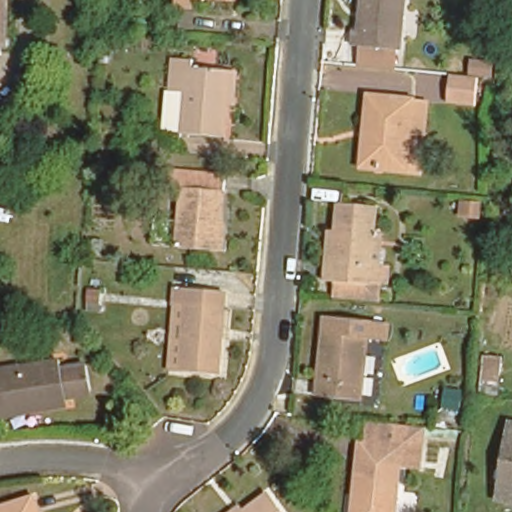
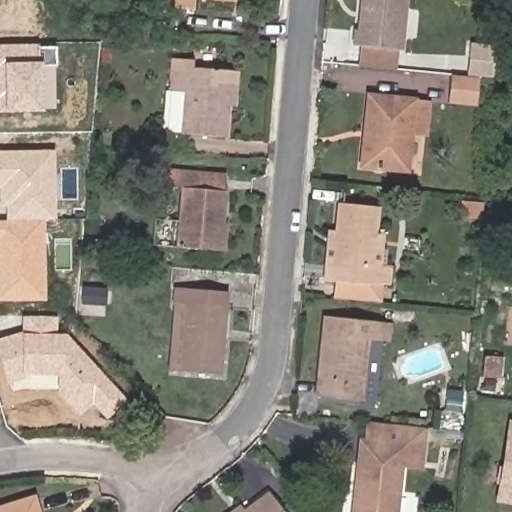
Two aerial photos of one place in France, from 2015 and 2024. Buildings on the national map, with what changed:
demolished [(0,39),(0,0),(13,0),(10,40),(0,39)]
unchanged [(180,10),(181,0),(197,0),(197,10),(180,10)]
unchanged [(362,57),(363,40),(357,40),(358,24),(363,25),(365,0),(407,0),(403,45),(402,45),(400,61),(362,57)]
new [(43,112),(4,112),(0,112),(0,45),(37,44),(37,47),(55,46),(55,67),(42,66),(43,112)]
unchanged [(186,131),(189,94),(172,92),(176,59),(197,60),(196,67),(233,71),(240,71),(237,109),(231,109),(229,138),(185,134),(184,150),(166,148),(167,130),(186,131)]
unchanged [(488,80),(472,79),(475,65),(490,67),(488,80)]
unchanged [(455,80),(477,82),(473,110),(447,107),(450,80),(455,80)]
unchanged [(363,132),(367,96),(427,103),(425,135),(408,132),(404,171),(369,167),(360,166),(363,132)]
new [(0,220),(5,220),(5,207),(0,208),(0,151),(54,151),(56,220),(42,220),(45,301),(0,301),(0,220)]
unchanged [(224,250),(181,247),(186,187),(171,186),(172,170),(230,175),(224,250)]
unchanged [(437,194),(435,213),(392,209),(395,189),(437,194)]
unchanged [(483,202),(482,219),(461,218),(462,201),(483,202)]
unchanged [(333,297),(335,281),(327,281),(331,230),(339,231),(342,203),(380,206),(378,231),(387,231),(383,265),(392,266),(391,282),(374,280),(373,285),(372,300),(333,297)]
unchanged [(102,255),(91,255),(93,238),(103,239),(102,255)]
unchanged [(182,305),(184,287),(235,292),(228,373),(190,370),(177,369),(182,305)]
new [(55,333),(61,333),(66,333),(127,400),(105,419),(92,405),(79,416),(55,391),(59,386),(58,377),(26,375),(7,383),(0,360),(0,338),(22,330),(21,315),(57,317),(55,333)]
unchanged [(388,340),(371,338),(364,400),(324,395),(330,332),(332,332),(333,316),(390,321),(388,340)]
unchanged [(507,358),(502,385),(480,382),(485,355),(507,358)]
demolished [(0,419),(0,375),(59,365),(60,375),(65,405),(66,408),(0,419)]
unchanged [(164,416),(150,428),(147,425),(140,415),(142,413),(152,404),(164,416)]
unchanged [(360,441),(362,421),(425,428),(423,448),(360,441)]
unchanged [(512,431),(512,510),(496,507),(508,430),(512,431)]
unchanged [(400,466),(395,512),(352,512),(360,441),(423,448),(421,468),(400,466)]
unchanged [(243,512),(267,494),(280,512),(243,512)]
unchanged [(36,512),(0,512),(0,507),(32,497),(36,512)]
unchanged [(242,512),(231,512),(238,507),(242,512)]

